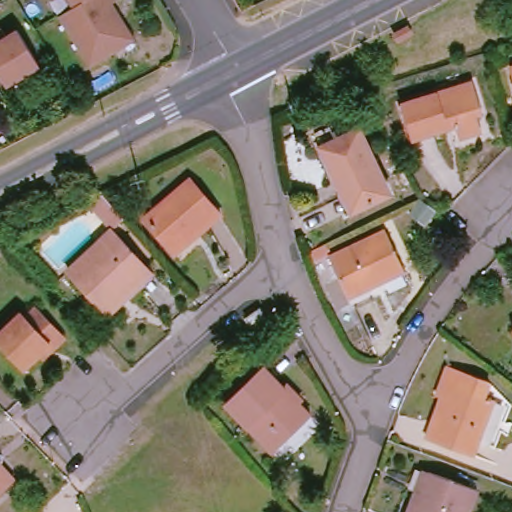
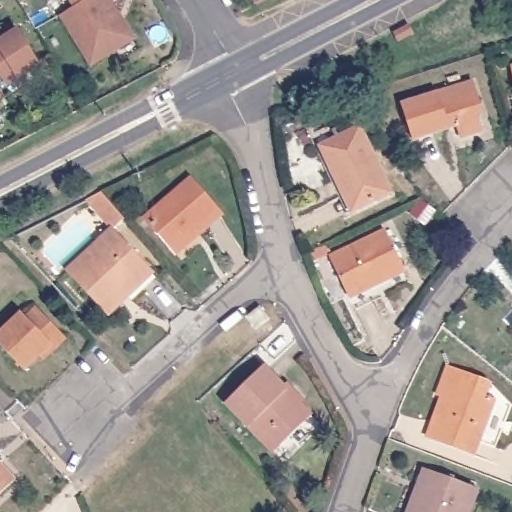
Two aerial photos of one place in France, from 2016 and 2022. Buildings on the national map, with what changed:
unchanged [(92,0),(122,0),(117,4),(139,40),(95,66),(65,16),(79,7),(92,0)]
unchanged [(79,7),(75,0),(92,0),(79,7)]
unchanged [(11,91),(2,77),(0,78),(0,37),(6,34),(12,42),(23,35),(45,70),(11,91)]
unchanged [(474,82),(482,107),(475,109),(482,129),(460,136),(455,123),(449,125),(450,127),(412,140),(402,106),(474,82)]
unchanged [(400,204),(367,220),(359,205),(350,209),(320,146),(343,135),(350,149),(370,139),(400,204)]
unchanged [(144,219),(190,180),(220,215),(197,235),(175,255),(170,250),(144,219)]
unchanged [(105,200),(125,224),(112,236),(90,212),(105,200)]
unchanged [(409,270),(374,287),(380,301),(360,310),(353,297),(335,258),(391,232),(409,270)]
unchanged [(152,279),(109,320),(68,277),(112,236),(152,279)]
unchanged [(337,255),(320,262),(315,252),(332,244),(337,255)]
unchanged [(0,333),(21,314),(25,318),(35,308),(65,338),(55,348),(50,345),(24,370),(0,345),(0,333)]
unchanged [(246,318),(260,308),(269,321),(255,331),(246,318)]
unchanged [(442,397),(437,396),(449,367),(487,382),(490,383),(485,397),(495,400),(474,456),(430,440),(426,438),(442,397)]
unchanged [(254,432),(230,408),(269,372),(316,421),(285,451),(278,457),(254,432)]
unchanged [(0,504),(0,464),(20,486),(0,504)]
unchanged [(429,471),(477,490),(469,512),(408,512),(415,492),(424,469),(429,471)]

